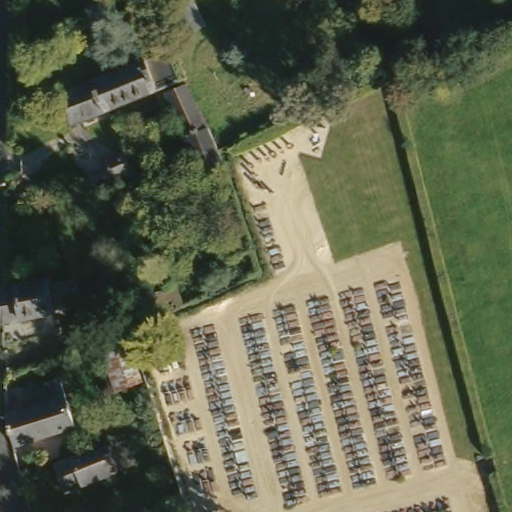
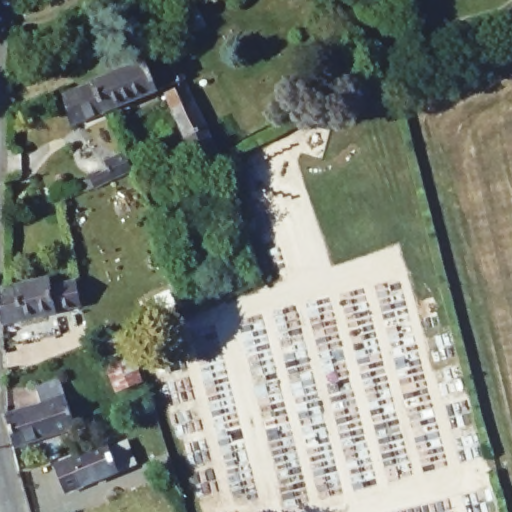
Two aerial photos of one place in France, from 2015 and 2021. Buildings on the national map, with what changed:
unchanged [(191,78),(189,79),(111,108),(108,108),(96,78),(180,47),(191,78)]
unchanged [(108,108),(79,119),(68,88),(96,78),(108,108)]
unchanged [(227,164),(211,172),(194,138),(193,139),(189,132),(172,98),(170,93),(190,83),(212,129),(226,158),(227,164)]
unchanged [(82,169),(88,167),(91,172),(104,167),(101,158),(119,150),(110,120),(124,115),(135,149),(121,153),(127,168),(87,183),(82,169)]
unchanged [(252,253),(228,261),(223,244),(246,235),(252,253)]
unchanged [(0,306),(0,288),(10,285),(54,275),(56,280),(73,276),(80,304),(61,308),(1,323),(0,306)]
unchanged [(182,309),(159,320),(150,297),(172,286),(182,309)]
unchanged [(147,387),(125,397),(109,354),(131,345),(147,387)]
unchanged [(47,402),(43,386),(65,379),(69,395),(79,426),(21,445),(12,413),(47,402)]
unchanged [(107,451),(125,445),(134,467),(116,474),(101,480),(63,495),(53,468),(105,447),(107,451)]

